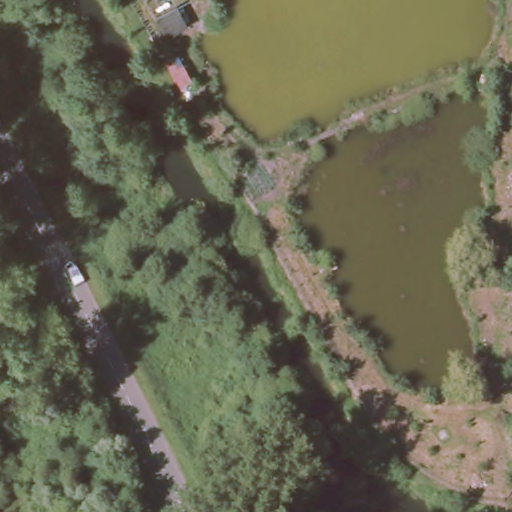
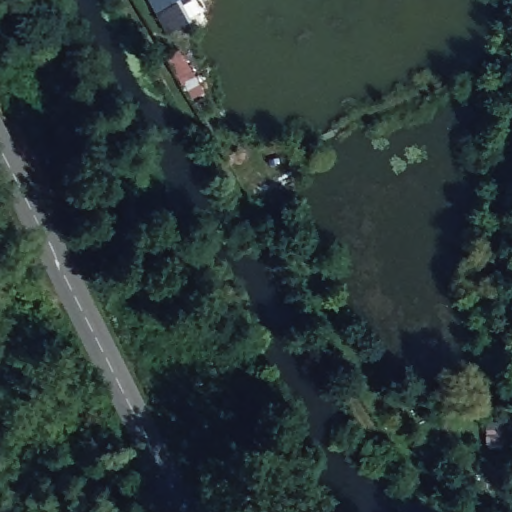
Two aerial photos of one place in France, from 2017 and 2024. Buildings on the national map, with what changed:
unchanged [(187,20),(171,31),(161,10),(178,0),(179,0),(187,20)]

